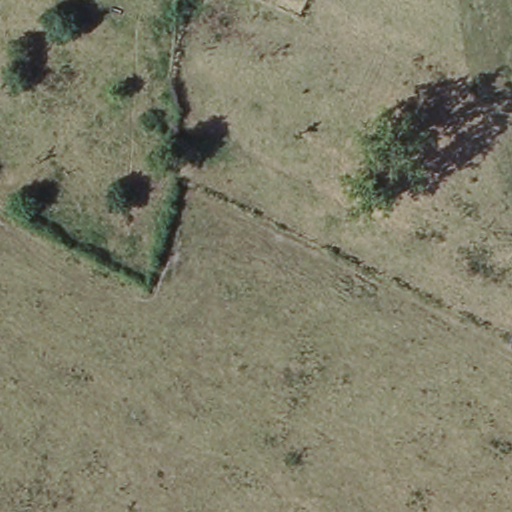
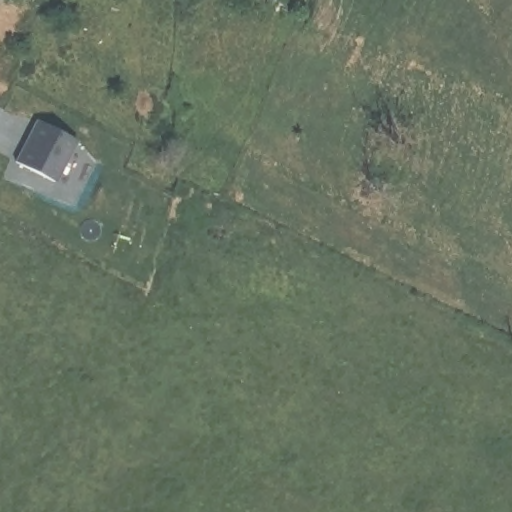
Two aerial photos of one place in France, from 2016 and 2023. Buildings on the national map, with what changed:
new [(37,119),(76,140),(56,183),(15,163),(37,119)]

